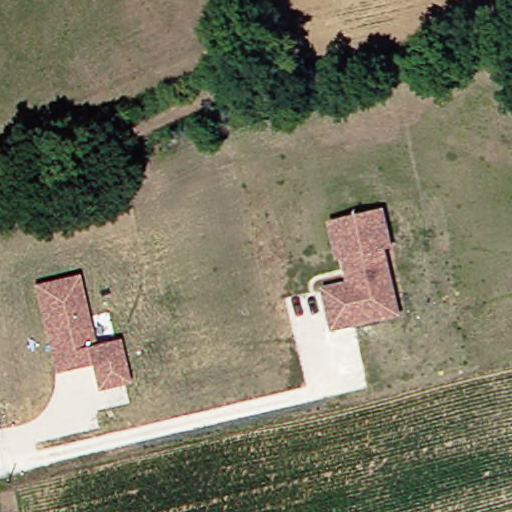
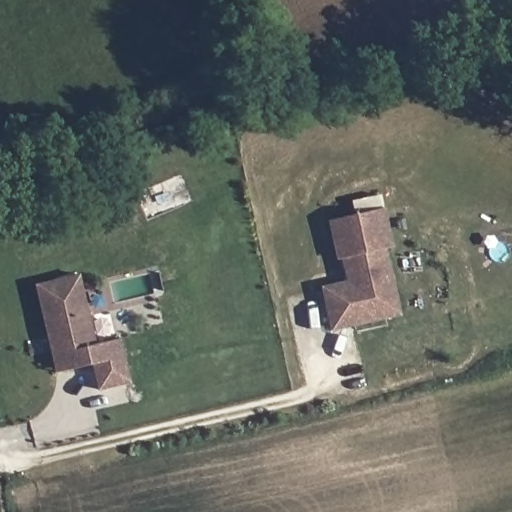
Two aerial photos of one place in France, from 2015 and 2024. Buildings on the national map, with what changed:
unchanged [(386,320),(332,332),(323,292),(351,286),(346,261),(340,262),(331,223),(382,212),(392,251),(385,252),(392,288),(398,317),(386,320)]
unchanged [(50,352),(36,281),(80,273),(89,315),(94,343),(115,339),(118,338),(127,382),(95,389),(90,363),(61,368),(53,370),(50,352)]

